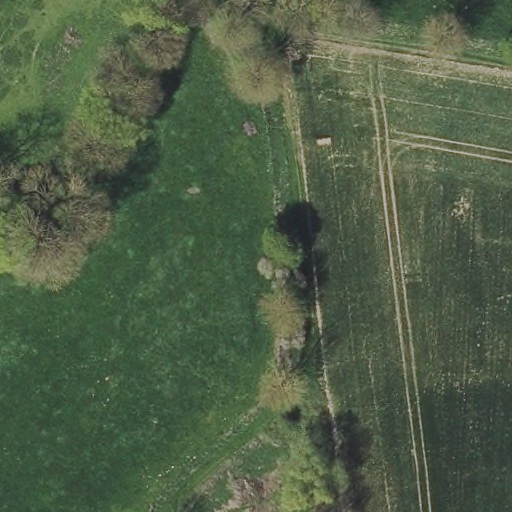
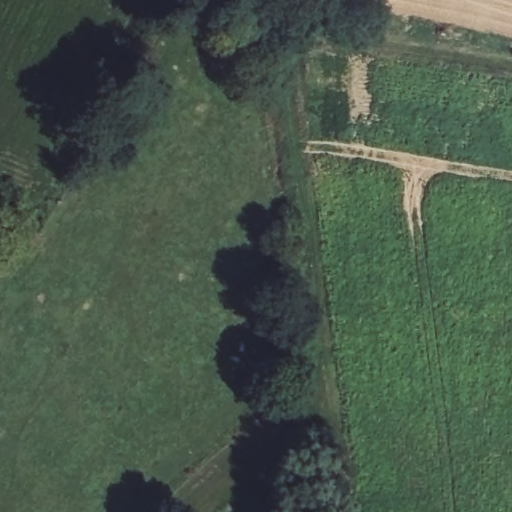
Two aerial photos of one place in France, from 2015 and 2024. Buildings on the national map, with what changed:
[]

